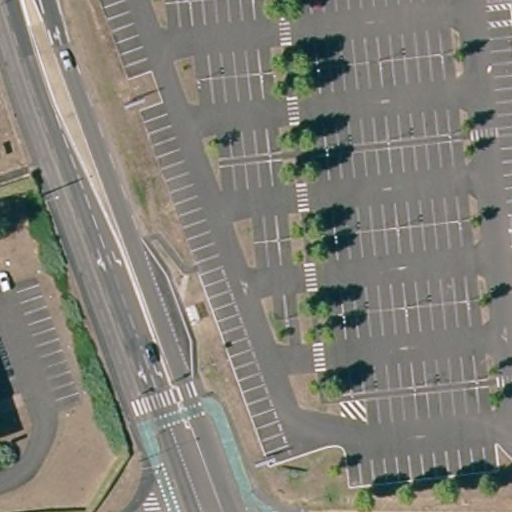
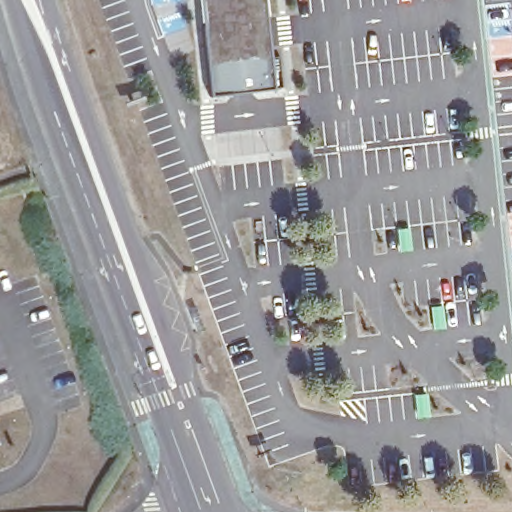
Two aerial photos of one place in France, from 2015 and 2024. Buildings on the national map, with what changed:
new [(279,87),(209,95),(201,41),(197,0),(268,0),(279,87)]

